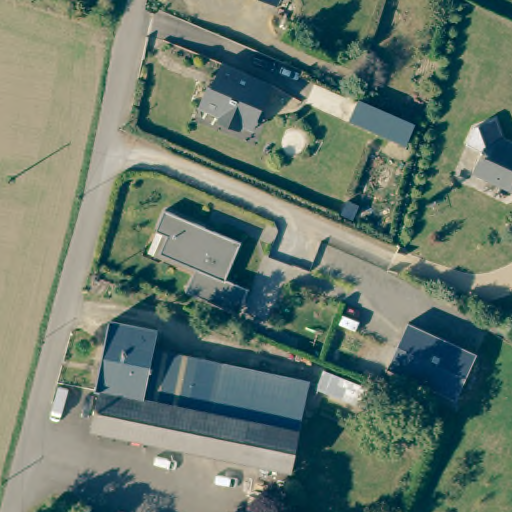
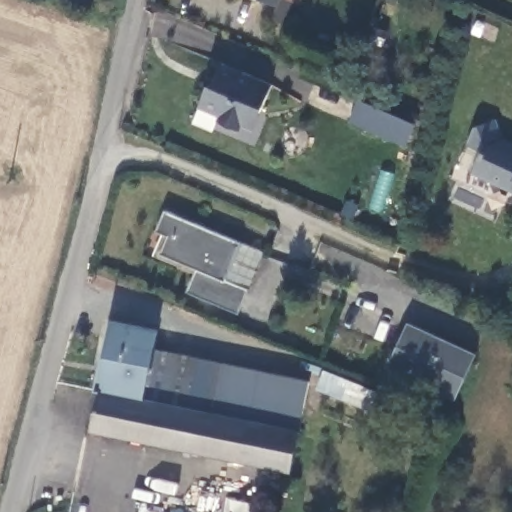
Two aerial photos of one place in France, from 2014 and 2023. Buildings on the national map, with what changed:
unchanged [(270,0),(279,0),(277,4),(270,0)]
unchanged [(248,122),(244,130),(223,120),(226,111),(205,102),(213,80),(219,82),(227,64),(274,84),(264,106),(256,125),(248,122)]
unchanged [(500,182),(494,185),(470,174),(479,154),(464,146),(471,130),(492,121),(500,141),(512,147),(512,192),(510,187),(500,182)]
unchanged [(239,313),(218,304),(190,292),(199,270),(162,255),(169,237),(158,232),(167,211),(243,244),(228,281),(249,290),(239,313)]
unchanged [(115,318),(161,329),(157,350),(148,396),(101,387),(115,318)]
unchanged [(405,329),(474,360),(453,406),(384,375),(405,329)]
unchanged [(157,350),(204,360),(222,363),(311,383),(302,427),(294,470),(96,431),(104,390),(100,389),(101,387),(148,396),(157,350)]
unchanged [(389,388),(380,407),(320,382),(328,364),(389,388)]

